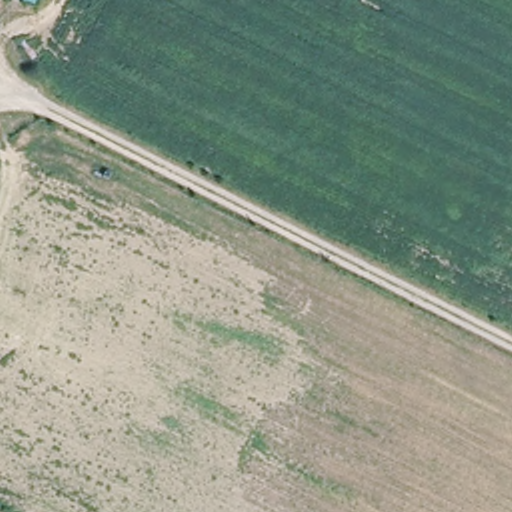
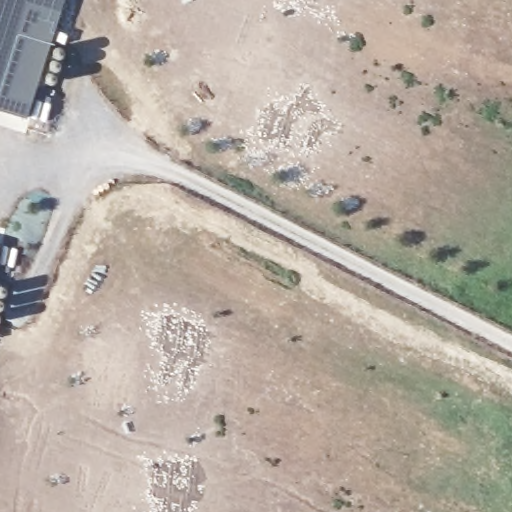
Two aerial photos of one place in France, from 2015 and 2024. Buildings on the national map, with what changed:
new [(0,0),(66,0),(51,46),(59,47),(61,50),(64,52),(65,55),(54,83),(48,82),(46,82),(45,82),(40,81),(28,119),(0,110),(0,0)]
new [(6,286),(9,288),(1,320),(0,322),(0,283),(3,284),(6,286)]

